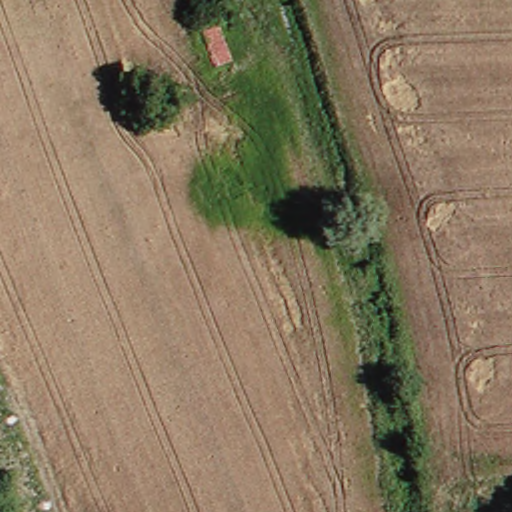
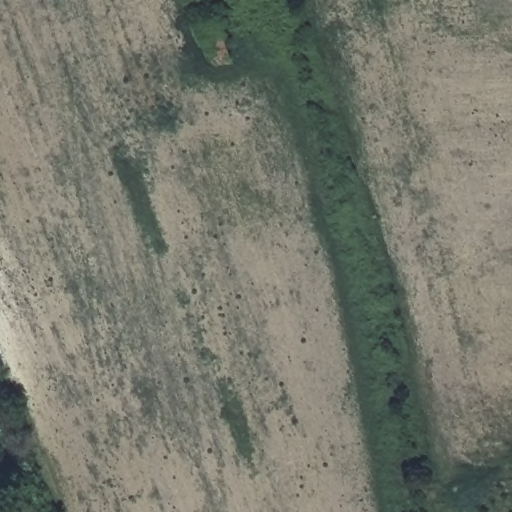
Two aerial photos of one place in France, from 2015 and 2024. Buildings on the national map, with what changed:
unchanged [(240,64),(224,70),(211,24),(227,20),(240,64)]

